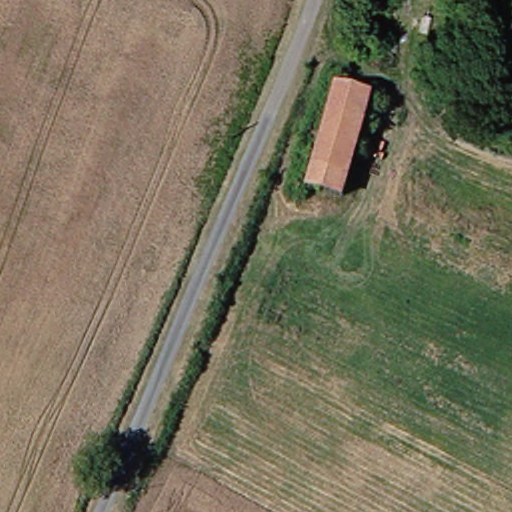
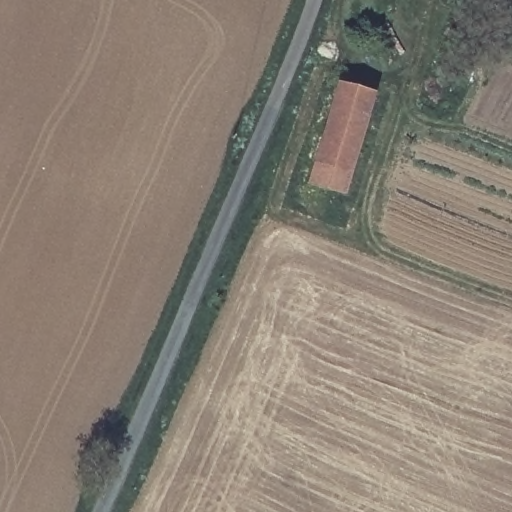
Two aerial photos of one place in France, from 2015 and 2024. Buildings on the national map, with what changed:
unchanged [(350,190),(315,182),(336,90),(370,97),(350,190)]

